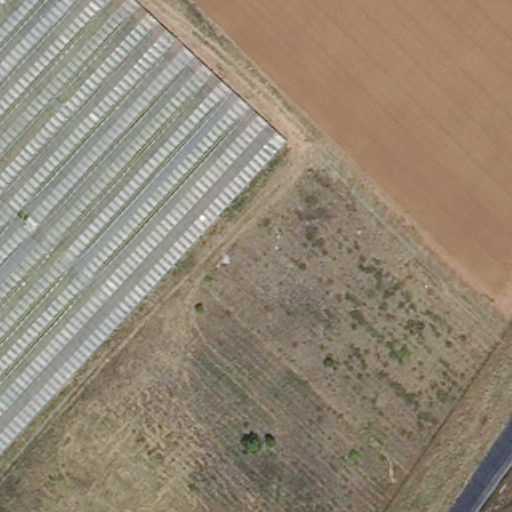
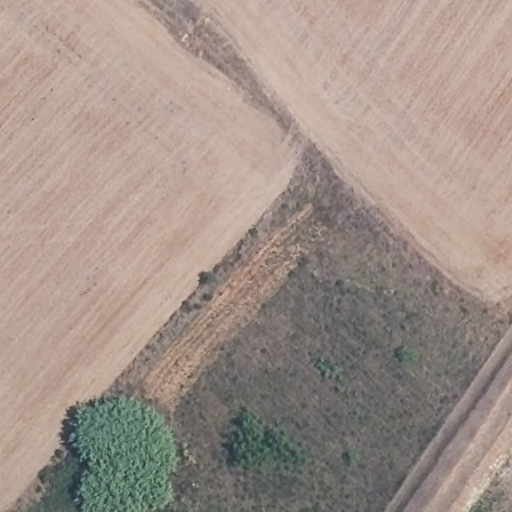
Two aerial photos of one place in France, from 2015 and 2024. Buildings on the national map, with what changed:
demolished [(281,142),(0,445),(0,0),(128,0),(281,142)]

